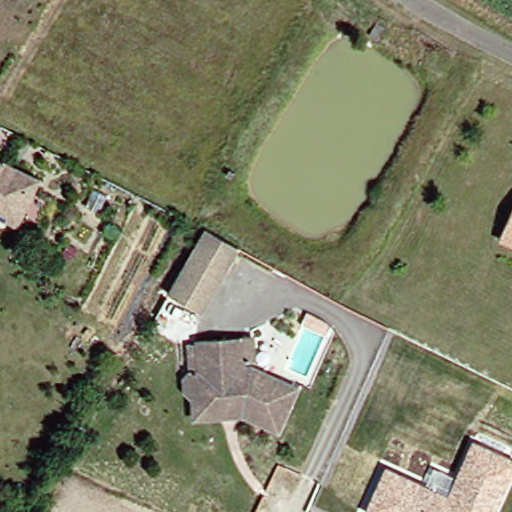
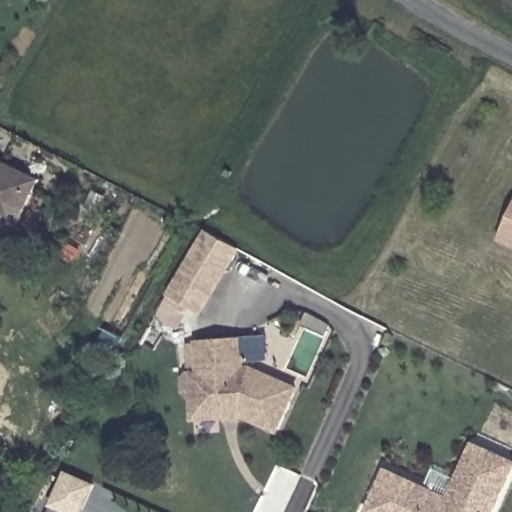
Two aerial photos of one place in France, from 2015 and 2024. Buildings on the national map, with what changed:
unchanged [(385,26),(380,36),(370,32),(375,21),(385,26)]
unchanged [(10,195),(0,190),(0,163),(20,174),(10,195)]
unchanged [(230,167),(235,170),(231,176),(226,173),(230,167)]
unchanged [(0,221),(0,190),(10,195),(20,174),(29,177),(5,224),(0,221)]
unchanged [(489,239),(508,195),(512,196),(512,249),(489,239)]
unchanged [(171,296),(184,273),(207,230),(239,247),(215,291),(204,312),(171,296)]
unchanged [(235,406),(230,403),(185,407),(184,394),(177,388),(177,377),(182,371),(191,370),(190,340),(217,338),(253,337),(255,363),(246,363),(246,370),(241,367),(287,387),(268,430),(232,414),(235,406)]
unchanged [(383,469),(425,487),(431,472),(453,482),(470,444),(512,463),(512,474),(496,512),(366,512),(383,469)]
new [(64,475),(91,487),(80,512),(61,512),(50,507),(64,475)]

